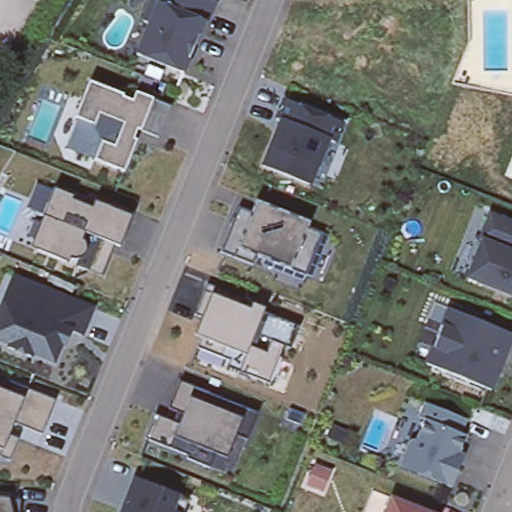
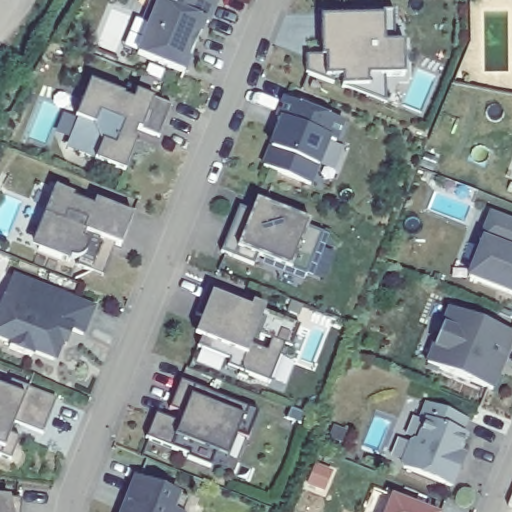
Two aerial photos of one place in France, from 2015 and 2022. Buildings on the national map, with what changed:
unchanged [(208,22),(205,21),(197,42),(193,40),(189,50),(193,51),(185,73),(138,54),(150,23),(145,20),(153,0),(216,0),(217,0),(208,22)]
new [(342,90),(342,74),(334,75),(335,86),(307,75),(307,57),(329,57),(328,48),(324,48),(323,14),(395,12),(395,44),(404,44),(405,78),(385,79),(386,107),(342,90)]
unchanged [(90,81),(125,95),(123,96),(133,100),(137,92),(172,106),(160,137),(138,129),(135,139),(137,140),(125,171),(95,160),(96,157),(77,150),(72,140),(80,119),(76,117),(90,81)]
unchanged [(329,141),(310,186),(265,167),(278,133),(282,122),(278,120),(286,100),(344,124),(335,144),(329,141)]
unchanged [(90,271),(76,265),(80,258),(79,258),(77,258),(77,259),(76,259),(75,259),(73,258),(72,258),(71,258),(70,257),(69,262),(38,250),(30,247),(43,215),(55,187),(75,195),(73,199),(92,206),(95,200),(133,215),(120,246),(115,244),(102,276),(90,271)]
unchanged [(221,252),(240,207),(260,215),(264,204),(291,215),(289,220),(324,234),(307,277),(257,256),(253,265),(221,252)]
unchanged [(465,278),(480,242),(476,240),(486,215),(487,214),(512,223),(512,297),(465,278)]
unchanged [(62,343),(55,360),(33,351),(32,355),(10,347),(12,342),(0,338),(0,312),(12,282),(15,275),(45,287),(94,307),(83,335),(72,330),(67,345),(62,343)]
unchanged [(228,367),(230,360),(197,347),(202,336),(195,333),(202,316),(195,313),(205,290),(212,293),(249,308),(252,303),(265,308),(262,313),(295,326),(287,345),(283,343),(268,382),(228,367)]
unchanged [(493,392),(440,370),(428,365),(435,350),(452,310),(512,334),(512,347),(505,363),(501,374),(493,392)]
unchanged [(11,380),(57,398),(43,433),(15,422),(10,433),(20,437),(10,460),(0,455),(0,386),(7,390),(11,380)]
unchanged [(220,445),(211,468),(188,458),(189,455),(146,438),(156,413),(180,423),(184,414),(170,408),(182,380),(211,392),(211,393),(260,412),(248,440),(237,435),(231,450),(220,445)]
unchanged [(463,466),(455,487),(406,468),(405,464),(413,443),(417,441),(420,442),(428,420),(423,418),(429,403),(469,420),(463,433),(469,435),(462,453),(467,456),(463,466)]
unchanged [(123,510),(136,477),(190,499),(184,512),(122,512),(123,510)]
unchanged [(0,496),(22,498),(20,512),(0,512),(0,496)]
unchanged [(394,498),(429,512),(388,512),(394,498)]

